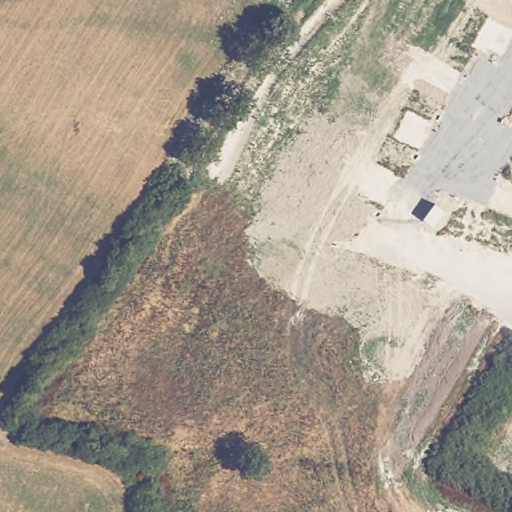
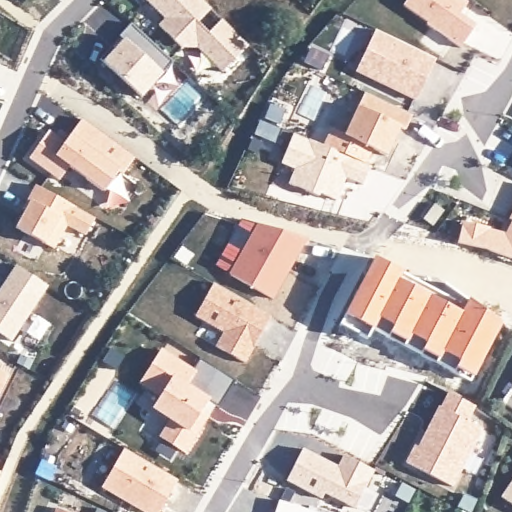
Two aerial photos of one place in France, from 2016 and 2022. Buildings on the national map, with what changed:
new [(249,45),(222,72),(197,48),(181,48),(158,25),(165,19),(146,0),(203,0),(211,9),(208,11),(219,22),(222,19),(249,45)]
new [(466,0),(467,1),(459,14),(475,25),(460,47),(426,24),(428,21),(403,5),(406,0),(466,0)]
new [(111,47),(115,50),(123,40),(119,36),(131,24),(174,62),(141,97),(100,60),(111,47)]
new [(375,30),(435,59),(416,99),(356,70),(375,30)]
new [(365,92),(412,114),(405,129),(400,126),(387,155),(344,136),(365,92)]
new [(65,143),(69,136),(82,119),(135,157),(122,175),(118,172),(104,192),(71,168),(64,173),(59,180),(29,159),(48,131),(65,143)]
new [(293,134),(371,166),(363,185),(346,178),(336,200),(320,194),(319,196),(288,184),(295,169),(281,164),(293,134)]
new [(22,209),(26,201),(35,186),(94,218),(85,235),(66,225),(53,249),(15,228),(25,210),(22,209)]
new [(272,299),(214,266),(241,219),(306,238),(296,256),(287,272),(272,299)]
new [(512,258),(484,249),(458,243),(462,222),(488,228),(488,229),(506,235),(512,224),(512,258)]
new [(373,257),(440,293),(445,282),(501,323),(471,380),(372,327),(366,339),(340,325),(373,257)]
new [(15,266),(47,287),(11,342),(0,334),(0,290),(15,266)]
new [(213,284),(271,316),(263,331),(260,330),(253,343),(255,344),(245,363),(215,346),(223,333),(195,317),(213,284)]
new [(161,351),(192,371),(200,358),(236,381),(219,408),(207,401),(201,411),(208,416),(184,452),(160,437),(171,420),(153,409),(161,397),(140,384),(161,351)]
new [(8,377),(0,392),(0,373),(8,377)]
new [(418,448),(426,434),(432,422),(439,407),(440,408),(448,393),(475,407),(467,422),(481,429),(452,487),(406,463),(415,446),(418,448)]
new [(123,449),(177,480),(159,512),(144,512),(102,488),(123,449)]
new [(302,449),(338,467),(344,456),(374,471),(354,508),(324,493),(321,499),(286,481),(302,449)]
new [(1,474),(0,476),(0,473),(1,474)]
new [(512,504),(501,497),(512,482),(512,504)]
new [(55,508),(65,512),(53,512),(55,508)]

